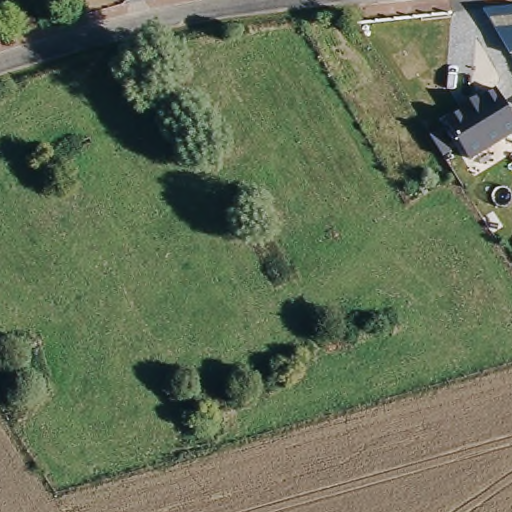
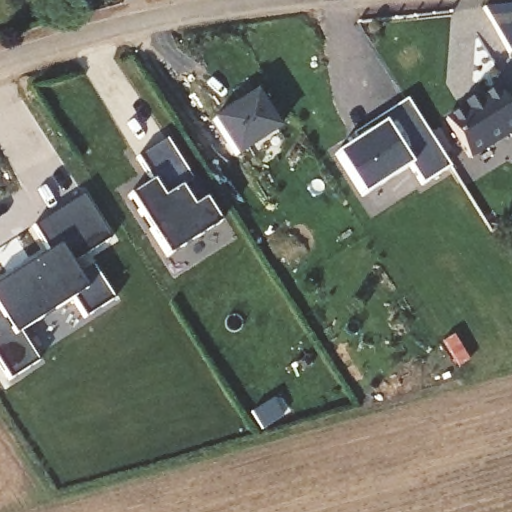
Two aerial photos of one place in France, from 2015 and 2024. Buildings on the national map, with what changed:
unchanged [(512,51),(511,52),(485,10),(512,5),(512,51)]
new [(240,95),(255,87),(275,122),(234,146),(214,111),(228,102),(230,105),(242,98),(240,95)]
unchanged [(512,133),(469,159),(462,147),(457,134),(449,119),(445,113),(484,91),(485,94),(497,87),(512,114),(512,133)]
new [(363,195),(337,154),(406,102),(427,136),(437,129),(451,151),(440,157),(447,167),(421,184),(410,165),(363,195)]
new [(167,139),(192,181),(180,188),(192,207),(204,200),(219,224),(167,258),(127,196),(150,182),(136,158),(167,139)]
new [(50,253),(33,227),(83,196),(110,239),(69,264),(75,275),(92,264),(115,298),(85,317),(72,298),(19,333),(38,361),(10,378),(0,363),(0,283),(50,253)]

